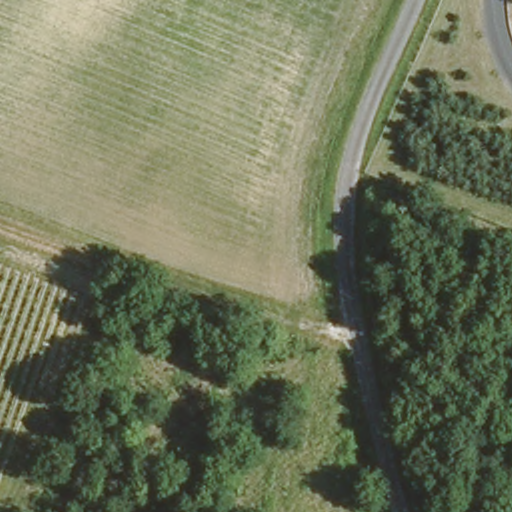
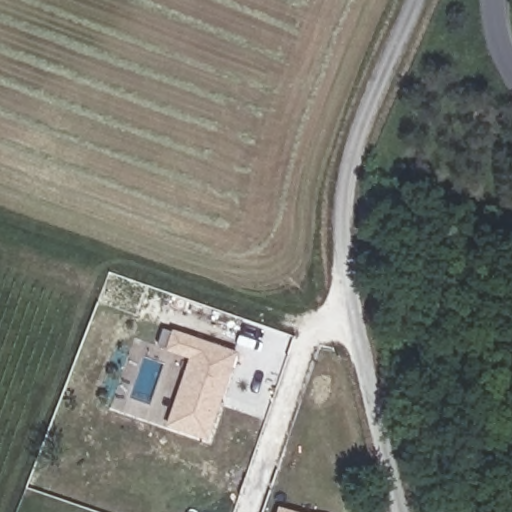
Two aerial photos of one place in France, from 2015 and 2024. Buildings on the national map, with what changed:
new [(193,357),(170,349),(176,332),(238,354),(208,439),(170,425),(193,357)]
new [(289,512),(281,512),(282,510),(289,512)]

